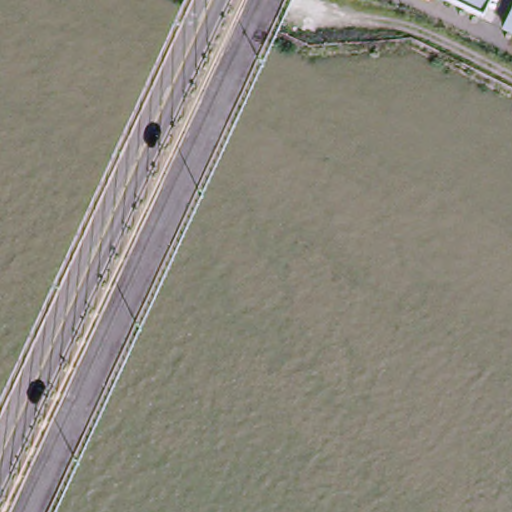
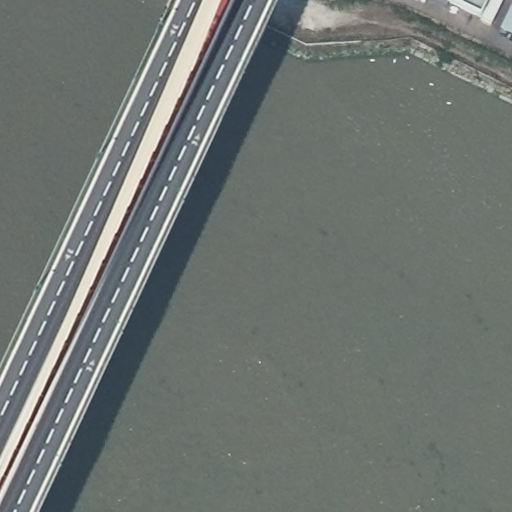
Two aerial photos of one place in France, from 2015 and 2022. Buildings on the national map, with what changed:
unchanged [(445,0),(495,0),(485,20),(445,0)]
unchanged [(499,33),(511,9),(512,10),(512,39),(499,33)]

